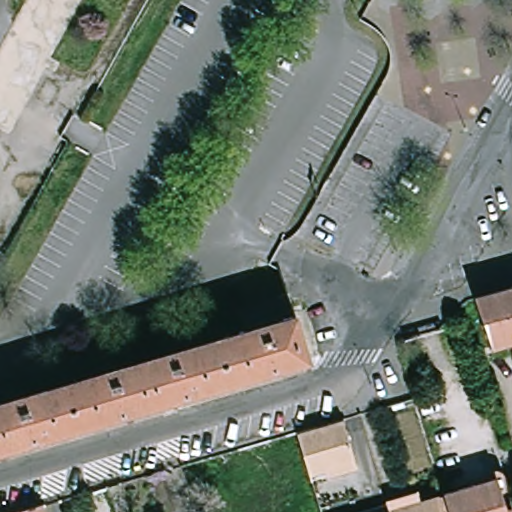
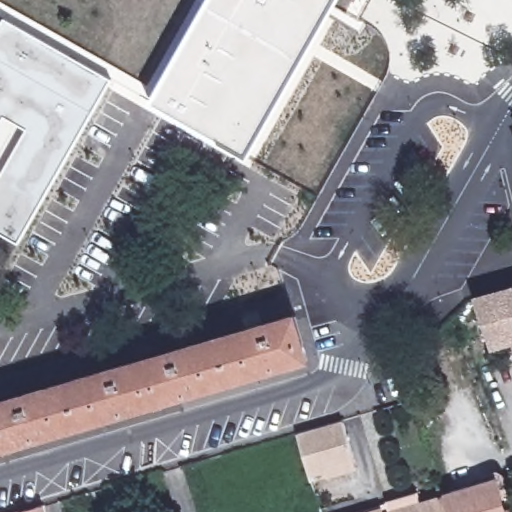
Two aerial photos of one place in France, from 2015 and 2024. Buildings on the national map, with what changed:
new [(209,0),(338,0),(248,157),(152,102),(209,0)]
new [(0,178),(27,129),(4,114),(0,122),(0,28),(5,18),(111,79),(20,241),(0,231),(0,178)]
unchanged [(490,348),(477,298),(512,289),(512,342),(490,348)]
unchanged [(315,354),(0,447),(0,401),(303,311),(315,354)]
unchanged [(313,482),(312,476),(298,431),(343,418),(355,459),(358,469),(313,482)]
unchanged [(512,509),(512,511),(512,512),(450,512),(445,495),(497,479),(507,511),(512,509)]
unchanged [(390,512),(387,499),(417,489),(420,501),(443,493),(445,495),(450,512),(390,512)]
unchanged [(44,512),(17,512),(42,504),(44,512)]

